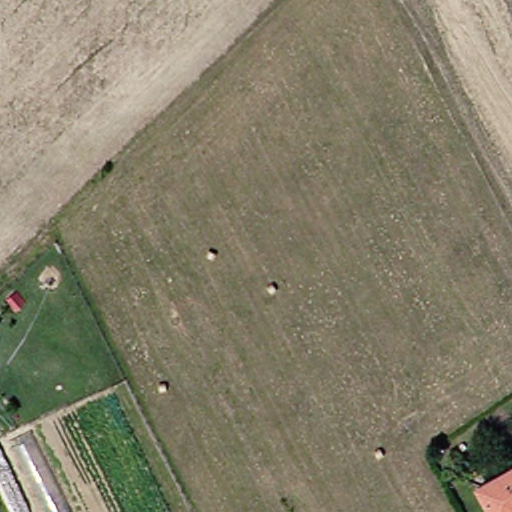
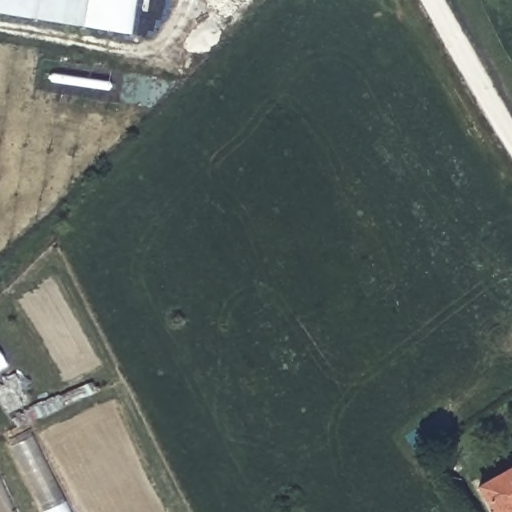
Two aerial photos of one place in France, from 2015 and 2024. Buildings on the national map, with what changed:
new [(127,38),(0,16),(0,0),(133,0),(127,38)]
unchanged [(494,512),(480,486),(512,469),(512,510),(508,512),(494,512)]

